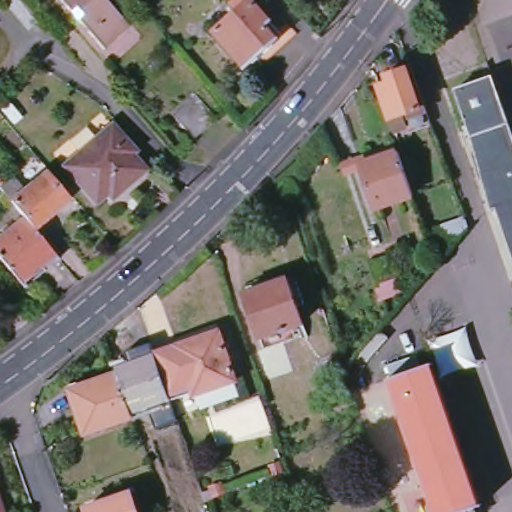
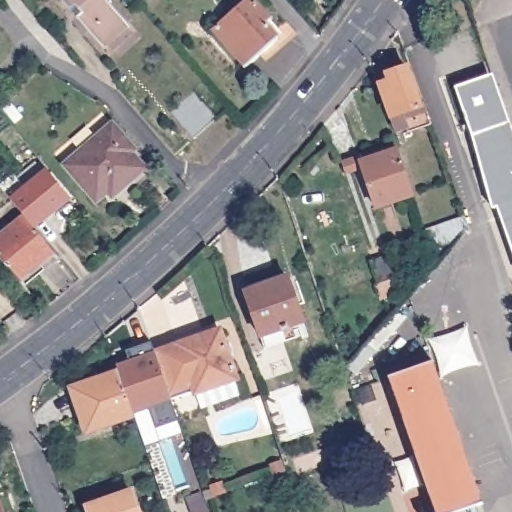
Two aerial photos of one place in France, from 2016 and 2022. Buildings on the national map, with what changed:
unchanged [(81,14),(75,6),(70,11),(60,0),(106,0),(128,25),(102,48),(76,19),(81,14)]
unchanged [(249,0),(252,0),(271,21),(266,26),(278,40),(247,68),(215,31),(249,0)]
unchanged [(385,75),(407,68),(420,106),(425,105),(431,124),(396,136),(379,85),(387,82),(385,75)]
unchanged [(455,88),(487,78),(488,82),(495,80),(512,131),(512,250),(501,219),(455,88)]
unchanged [(171,113),(194,93),(217,119),(194,140),(171,113)]
unchanged [(107,194),(96,203),(63,166),(112,123),(136,150),(132,154),(145,169),(122,190),(112,199),(107,194)]
unchanged [(360,164),(331,174),(328,167),(395,144),(398,150),(413,196),(376,209),(360,164)]
unchanged [(5,187),(18,176),(30,190),(51,172),(73,199),(55,214),(52,211),(35,225),(30,217),(5,187)]
unchanged [(30,217),(35,225),(60,254),(25,283),(0,252),(0,241),(30,217)]
unchanged [(468,230),(437,265),(426,230),(465,218),(468,230)]
unchanged [(383,298),(379,285),(370,262),(394,254),(402,277),(400,278),(404,291),(383,298)]
unchanged [(288,279),(303,323),(260,338),(245,293),(288,279)]
unchanged [(220,331),(237,381),(195,395),(194,393),(171,401),(155,354),(220,331)]
unchanged [(116,367),(155,354),(171,401),(133,415),(118,373),(116,367)]
unchanged [(463,512),(435,512),(388,378),(431,364),(480,506),(463,512)]
unchanged [(86,433),(71,390),(118,373),(133,415),(133,417),(86,433)]
unchanged [(282,461),(286,471),(276,474),(273,464),(282,461)]
unchanged [(185,497),(180,483),(196,478),(201,492),(185,497)]
unchanged [(137,512),(89,512),(88,508),(130,493),(137,512)]
unchanged [(1,512),(0,512),(0,509),(1,512)]

